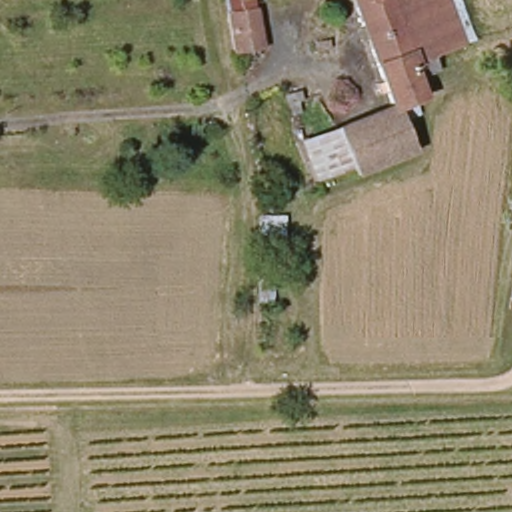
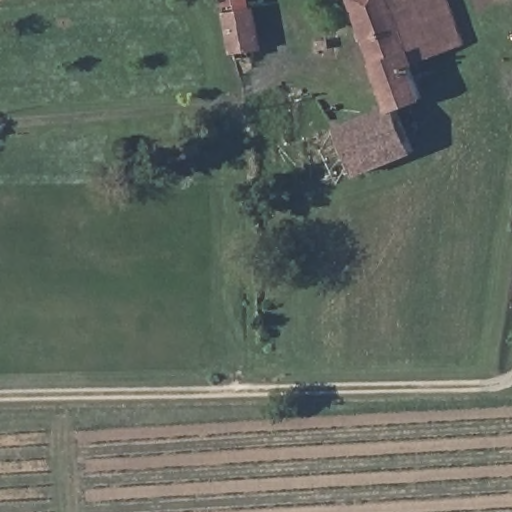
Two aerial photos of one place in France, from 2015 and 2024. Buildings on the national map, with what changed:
unchanged [(255,48),(250,49),(250,54),(241,56),(240,51),(231,51),(224,10),(223,3),(223,0),(244,0),(245,8),(247,8),(255,48)]
unchanged [(399,102),(415,146),(352,171),(349,163),(335,126),(389,105),(348,0),(444,0),(461,43),(433,52),(436,64),(415,72),(421,93),(399,102)]
unchanged [(310,177),(292,141),(335,126),(349,163),(310,177)]

